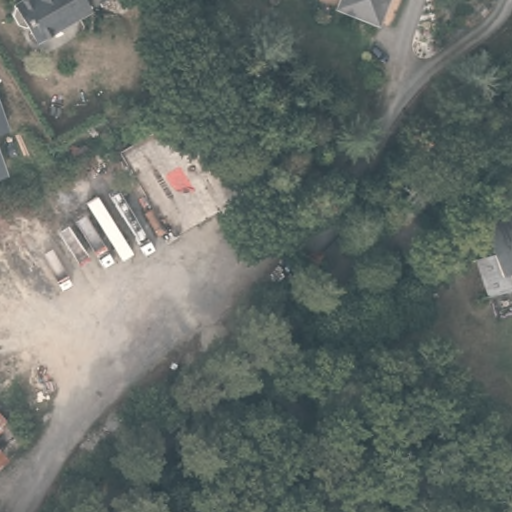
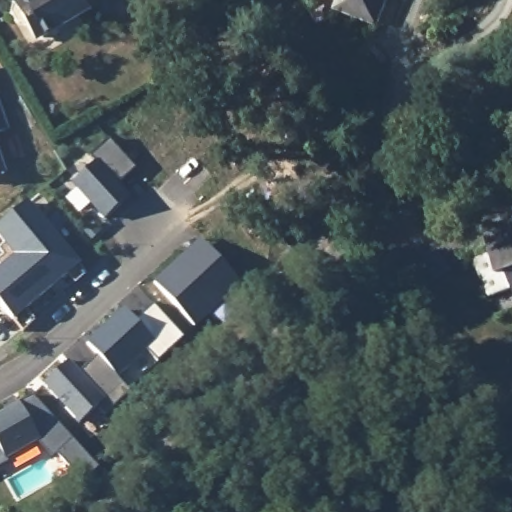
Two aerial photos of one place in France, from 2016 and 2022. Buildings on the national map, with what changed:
unchanged [(42,41),(34,25),(27,28),(20,26),(15,22),(12,14),(15,9),(15,5),(24,0),(84,0),(92,12),(42,41)]
unchanged [(337,0),(385,0),(377,22),(335,7),(337,0)]
unchanged [(0,133),(0,95),(12,130),(0,133)]
new [(93,162),(90,159),(109,141),(137,172),(117,189),(127,200),(104,221),(70,183),(93,162)]
unchanged [(0,173),(0,145),(9,171),(0,173)]
new [(0,240),(0,224),(31,198),(86,263),(17,324),(0,305),(0,267),(13,257),(0,240)]
unchanged [(490,295),(478,258),(493,252),(483,221),(512,211),(512,287),(490,295)]
new [(201,240),(244,285),(197,328),(154,282),(201,240)]
new [(125,310),(134,321),(153,303),(184,338),(157,362),(147,350),(118,377),(87,344),(125,310)]
new [(51,362),(61,373),(80,357),(112,393),(87,417),(79,409),(61,425),(26,386),(51,362)]
new [(32,397),(54,435),(42,441),(7,458),(9,463),(0,468),(0,412),(19,402),(32,397)]
demolished [(0,416),(26,444),(0,467),(0,416)]

